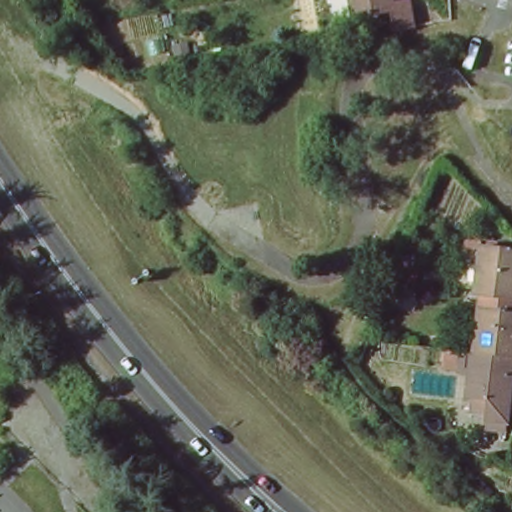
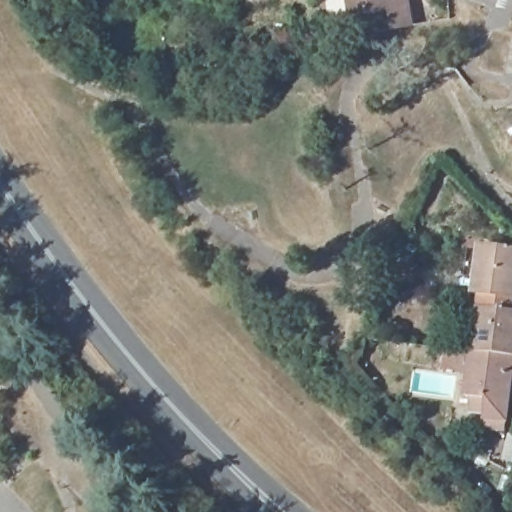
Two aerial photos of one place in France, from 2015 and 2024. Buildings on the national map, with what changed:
unchanged [(394,0),(396,0),(409,0),(414,23),(396,27),(393,7),(356,14),(353,0),(394,0)]
unchanged [(512,249),(512,295),(474,290),(479,245),(512,249)]
unchanged [(512,310),(512,355),(480,350),(485,307),(512,310)]
unchanged [(488,417),(489,411),(474,410),(476,394),(471,393),(474,367),(464,366),(466,349),(480,350),(512,355),(512,415),(512,419),(511,428),(487,425),(488,417)]

